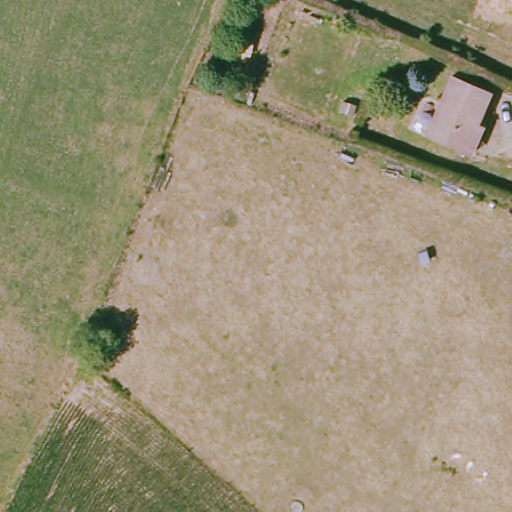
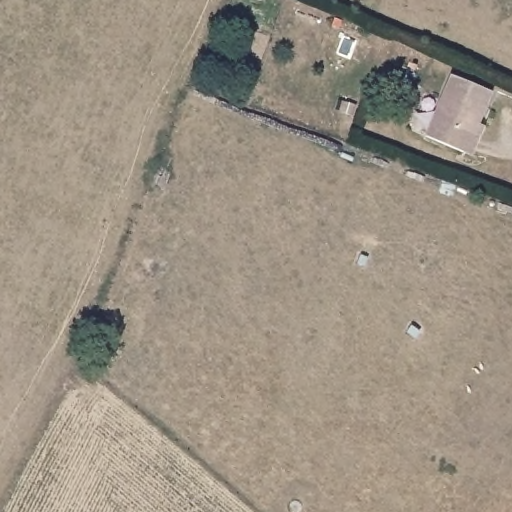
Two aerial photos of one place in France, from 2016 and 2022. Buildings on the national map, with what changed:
unchanged [(490,93),(464,156),(425,139),(450,76),(490,93)]

